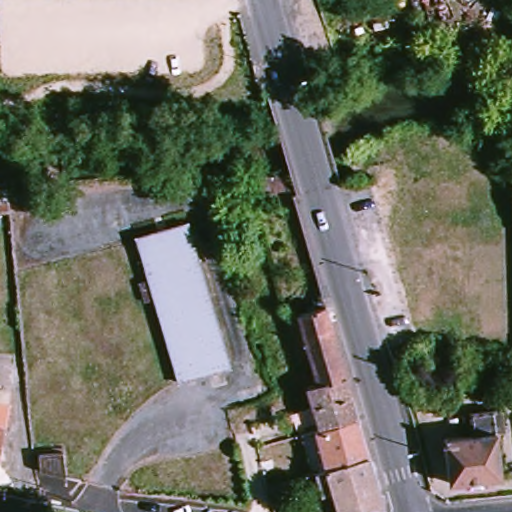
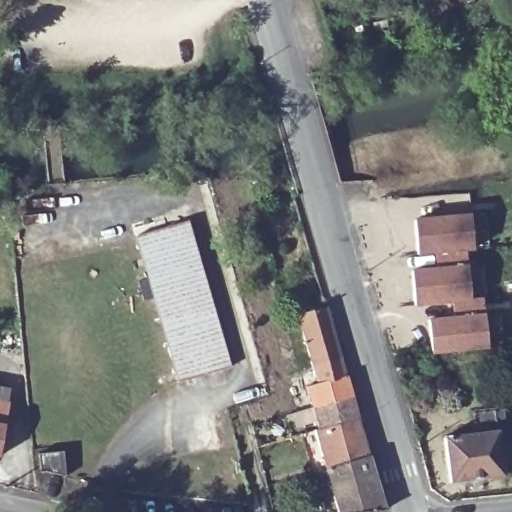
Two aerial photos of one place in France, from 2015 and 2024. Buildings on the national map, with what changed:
unchanged [(439,51),(471,50),(472,66),(441,67),(439,51)]
new [(414,219),(468,213),(473,250),(417,255),(414,219)]
unchanged [(231,367),(178,382),(135,240),(186,225),(231,367)]
new [(437,267),(436,257),(464,253),(466,267),(471,301),(416,306),(411,270),(437,267)]
new [(454,317),(453,306),(481,303),(487,348),(432,354),(428,320),(454,317)]
unchanged [(343,361),(318,370),(302,319),(328,310),(343,361)]
unchanged [(343,361),(354,400),(319,410),(314,390),(323,387),(318,370),(343,361)]
unchanged [(3,458),(0,458),(0,391),(14,394),(3,458)]
unchanged [(354,400),(361,423),(325,432),(323,424),(304,430),(302,423),(296,424),(294,417),(319,410),(354,400)]
unchanged [(449,485),(444,439),(463,437),(462,430),(472,428),(471,415),(494,413),(494,414),(501,413),(502,427),(495,428),(501,479),(449,485)]
unchanged [(330,473),(319,434),(325,432),(361,423),(372,461),(330,473)]
unchanged [(38,466),(35,451),(54,455),(56,470),(38,466)]
unchanged [(342,512),(330,473),(372,461),(387,512),(342,512)]
unchanged [(252,503),(252,512),(234,512),(234,504),(252,503)]

